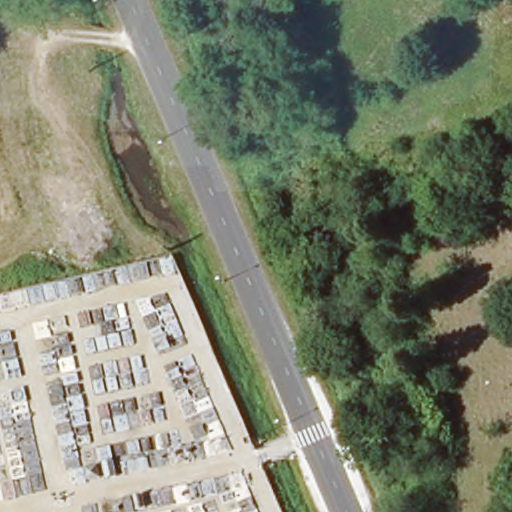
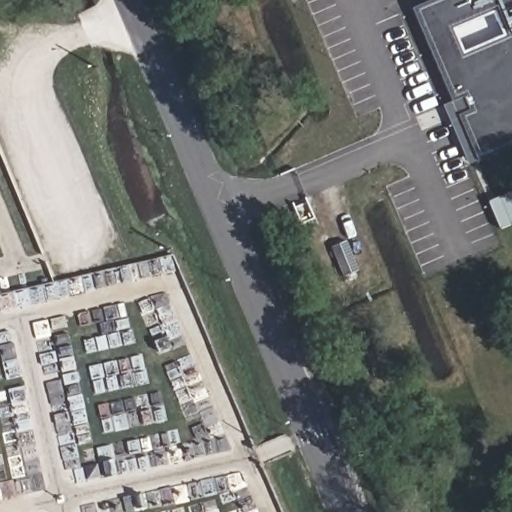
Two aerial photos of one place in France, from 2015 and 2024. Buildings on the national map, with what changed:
new [(452,101),(412,8),(431,0),(439,20),(446,16),(439,0),(512,0),(512,148),(477,162),(468,166),(443,105),(452,101)]
new [(439,20),(431,0),(439,0),(446,16),(439,20)]

